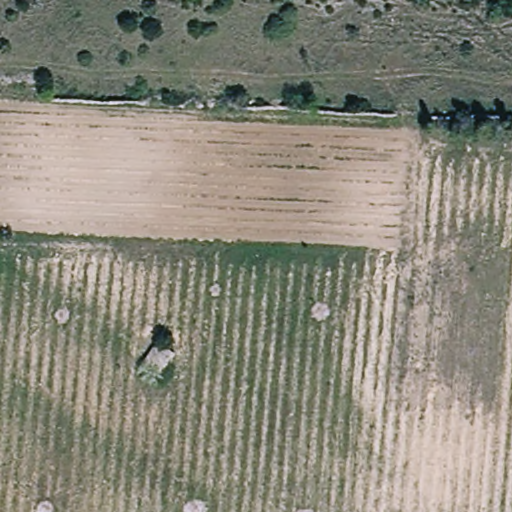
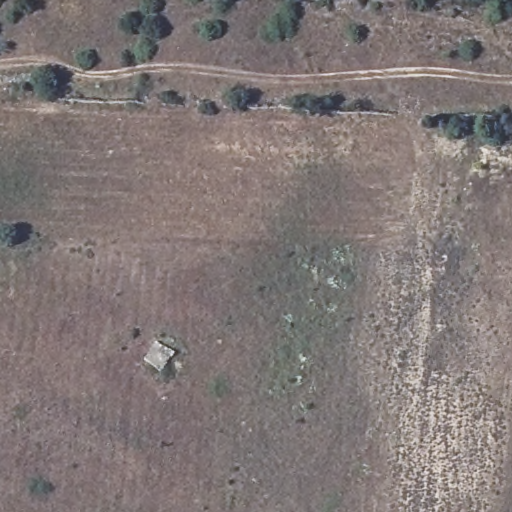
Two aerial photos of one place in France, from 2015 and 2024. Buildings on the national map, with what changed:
unchanged [(157,379),(139,368),(153,350),(168,361),(157,379)]

